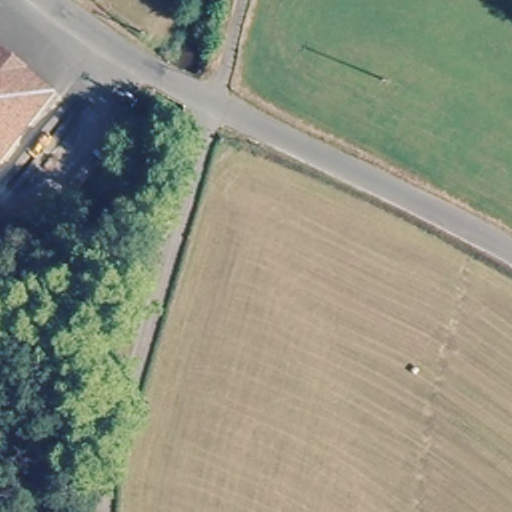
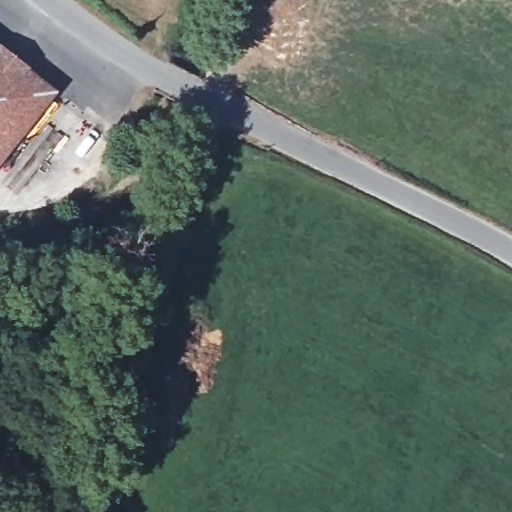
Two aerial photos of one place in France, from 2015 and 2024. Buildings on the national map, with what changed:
unchanged [(0,153),(0,52),(50,90),(0,153)]

